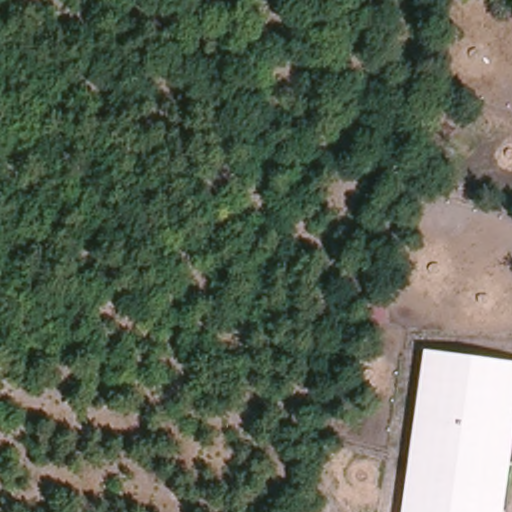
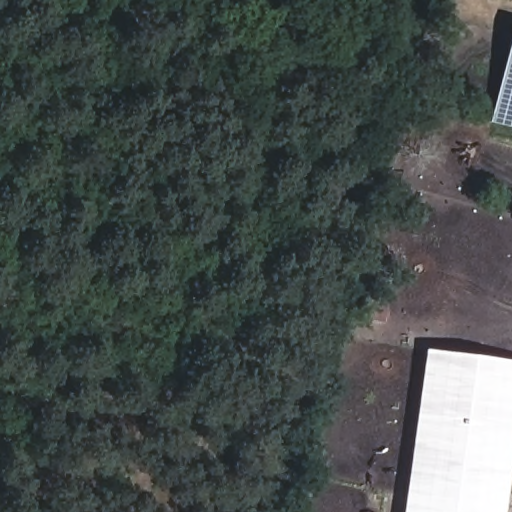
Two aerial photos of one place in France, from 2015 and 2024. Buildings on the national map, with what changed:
new [(512,37),(512,128),(490,122),(512,37)]
unchanged [(512,486),(508,512),(401,512),(423,350),(512,363),(512,486)]

